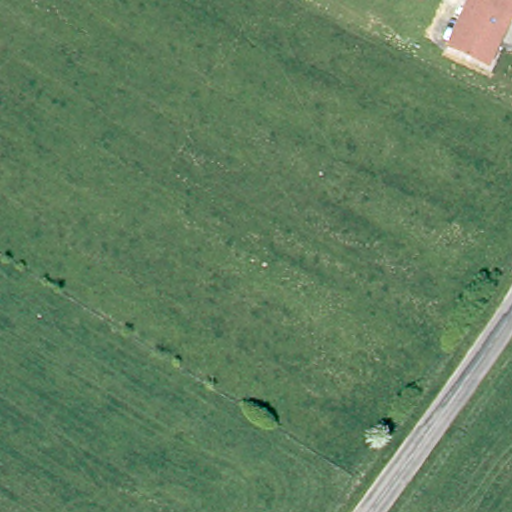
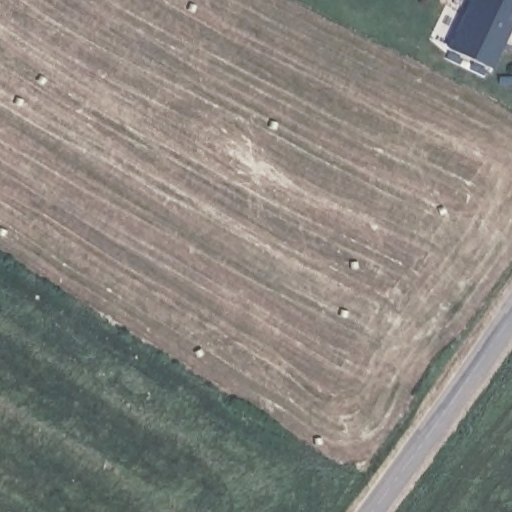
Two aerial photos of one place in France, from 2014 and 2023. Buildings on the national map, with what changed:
unchanged [(512,20),(492,66),(490,65),(471,56),(450,47),(472,0),(512,0),(512,20)]

